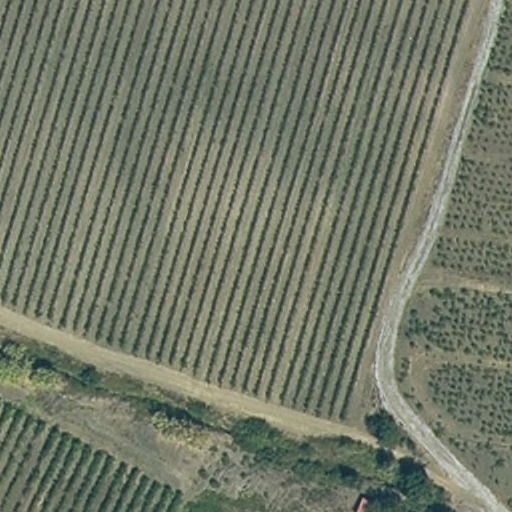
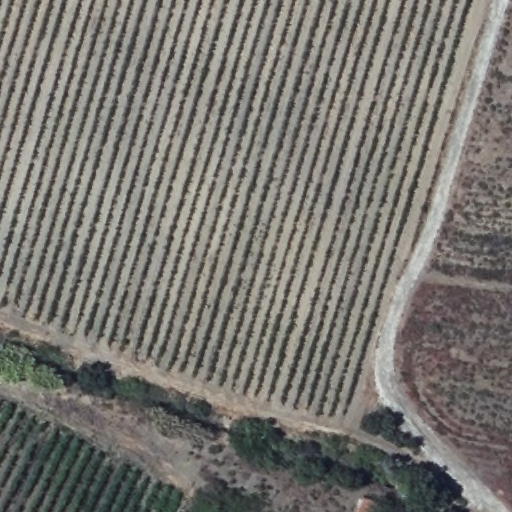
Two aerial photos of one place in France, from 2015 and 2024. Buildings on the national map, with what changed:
unchanged [(388,500),(396,503),(393,512),(357,512),(365,493),(388,500)]

